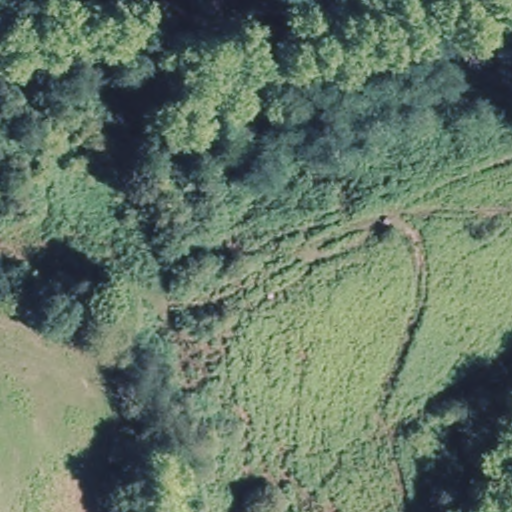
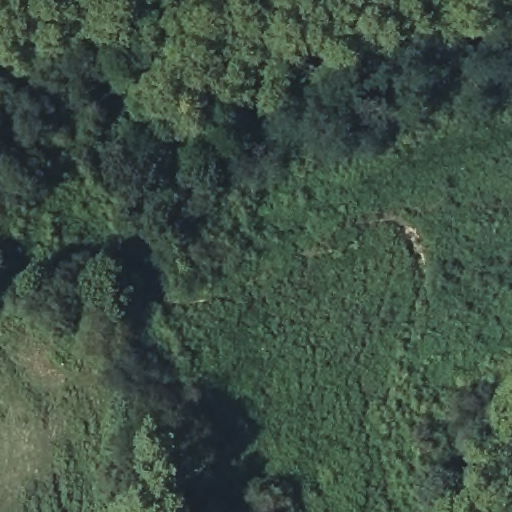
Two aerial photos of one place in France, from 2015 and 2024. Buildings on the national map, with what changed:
[]

